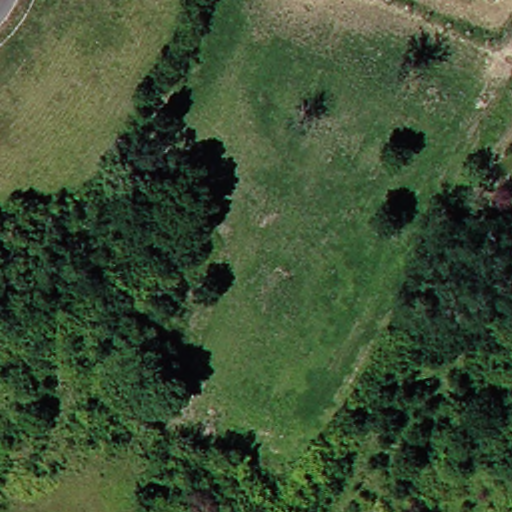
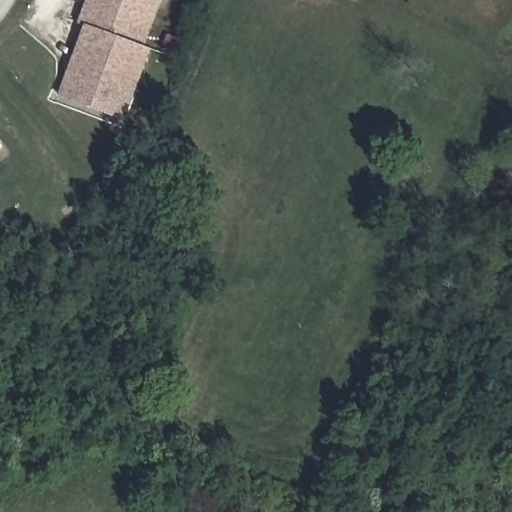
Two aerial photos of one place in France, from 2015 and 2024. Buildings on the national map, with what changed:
new [(137,85),(125,121),(72,102),(62,99),(81,46),(87,29),(80,27),(86,9),(89,0),(158,0),(155,11),(142,47),(149,49),(137,85)]

